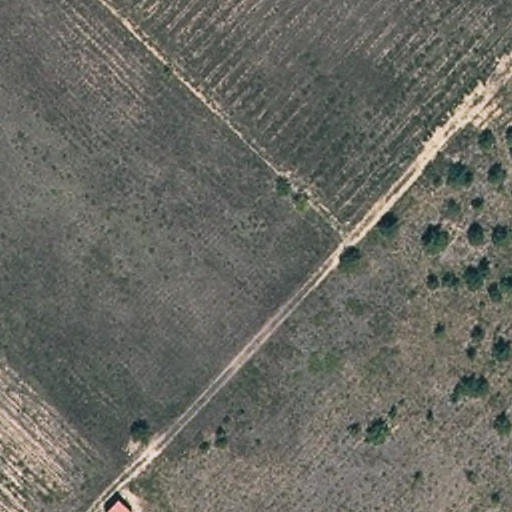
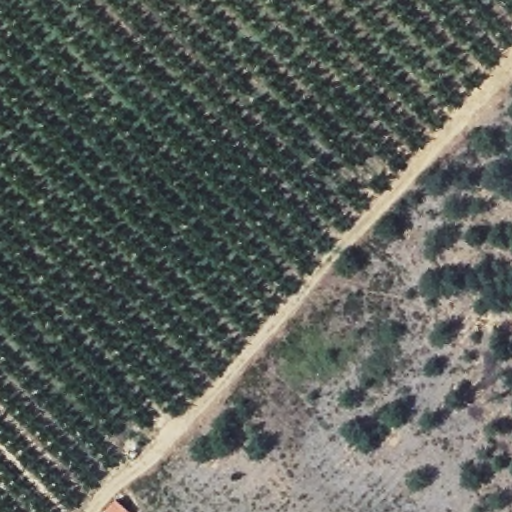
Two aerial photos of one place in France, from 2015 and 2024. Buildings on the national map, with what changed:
unchanged [(113,499),(126,512),(103,512),(113,499)]

